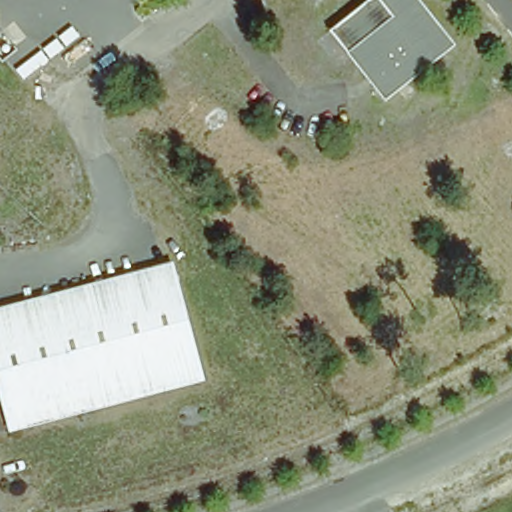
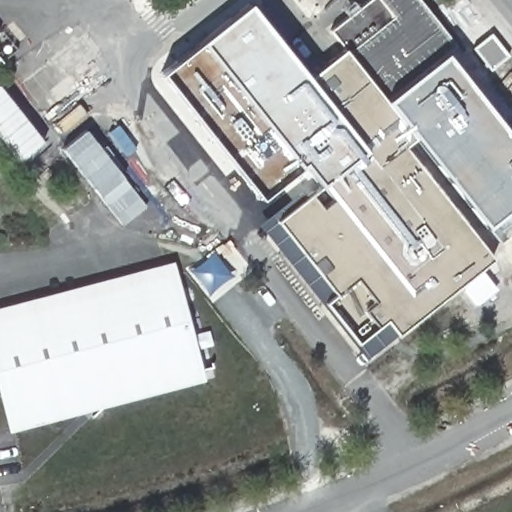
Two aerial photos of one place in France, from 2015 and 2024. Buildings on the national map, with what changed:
unchanged [(422,0),(453,39),(383,95),(382,93),(365,72),(347,48),(329,25),(361,0),(422,0)]
new [(248,2),(308,78),(365,150),(318,187),(300,165),(258,199),(160,72),(248,2)]
new [(365,150),(308,78),(347,48),(365,72),(382,93),(383,95),(413,138),(404,146),(492,258),(398,335),(387,321),(356,343),(325,302),(334,293),(276,221),(365,150)]
new [(512,206),(510,207),(512,209),(512,229),(497,241),(484,228),(413,138),(383,95),(442,48),(512,138),(512,206)]
new [(1,64),(0,64),(0,62),(1,64)]
new [(2,85),(48,143),(23,162),(0,131),(0,86),(2,85)]
new [(122,226),(63,150),(87,132),(146,207),(122,226)]
unchanged [(168,280),(193,376),(12,425),(0,372),(0,324),(168,280)]

